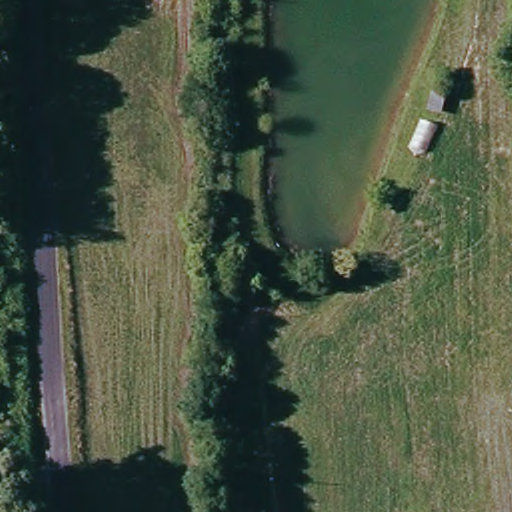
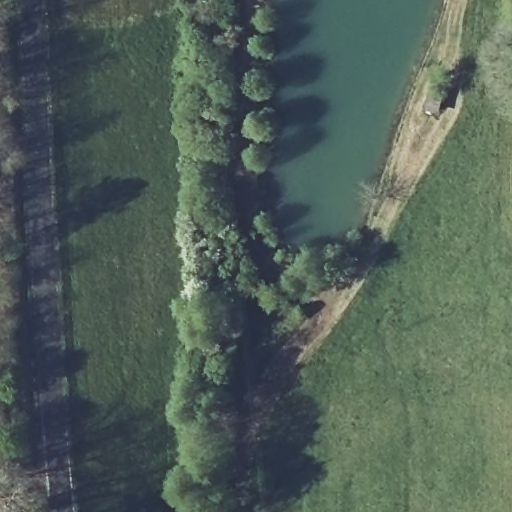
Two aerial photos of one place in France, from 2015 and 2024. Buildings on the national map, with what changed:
unchanged [(419,112),(423,96),(435,99),(432,114),(419,112)]

